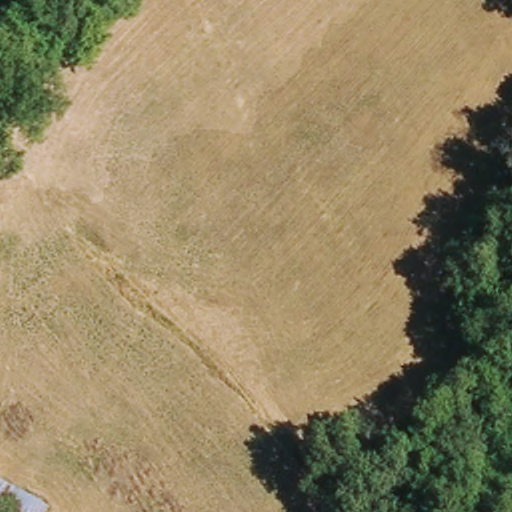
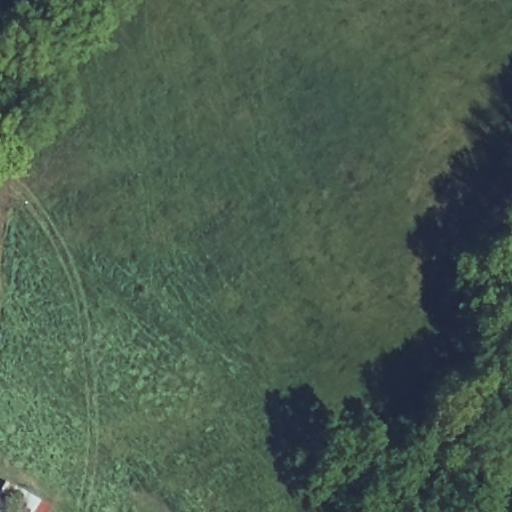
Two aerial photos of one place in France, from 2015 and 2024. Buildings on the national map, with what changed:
unchanged [(53,512),(0,512),(0,477),(55,507),(53,512)]

